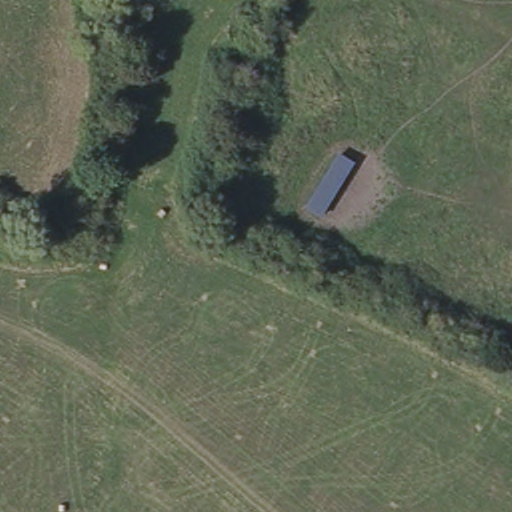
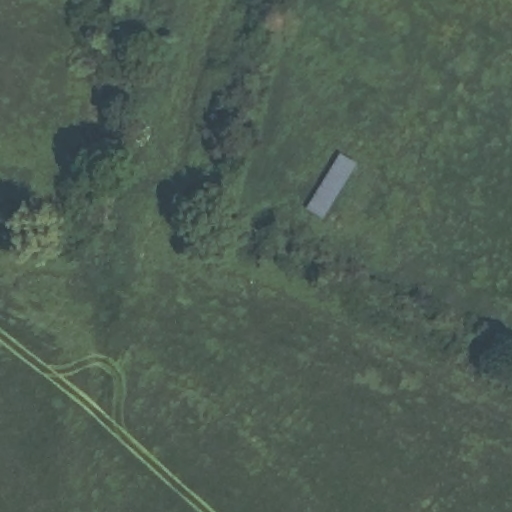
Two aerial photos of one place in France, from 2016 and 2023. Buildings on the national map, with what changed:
unchanged [(341,150),(358,160),(325,215),(309,205),(341,150)]

